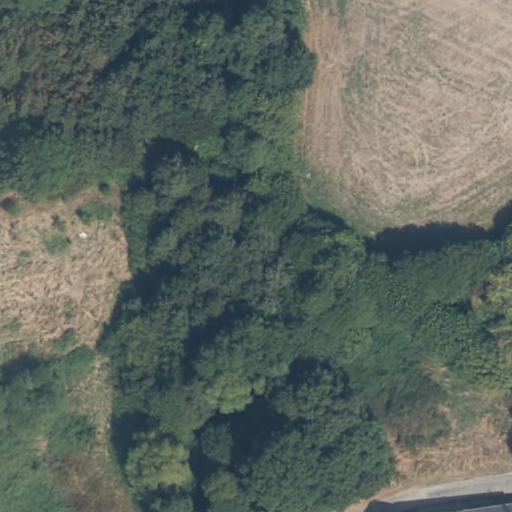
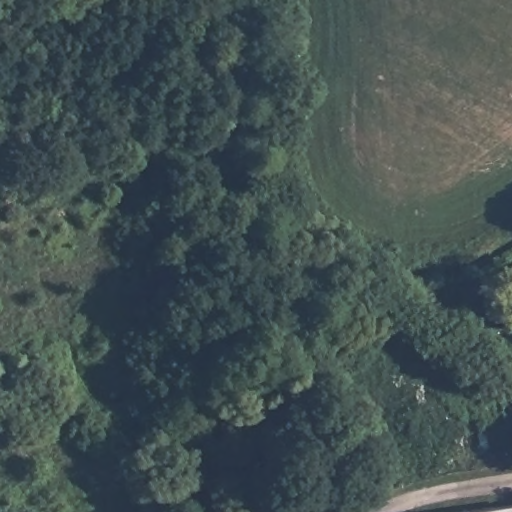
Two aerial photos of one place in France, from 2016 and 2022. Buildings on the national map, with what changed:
unchanged [(512,512),(470,512),(512,507),(512,512)]

